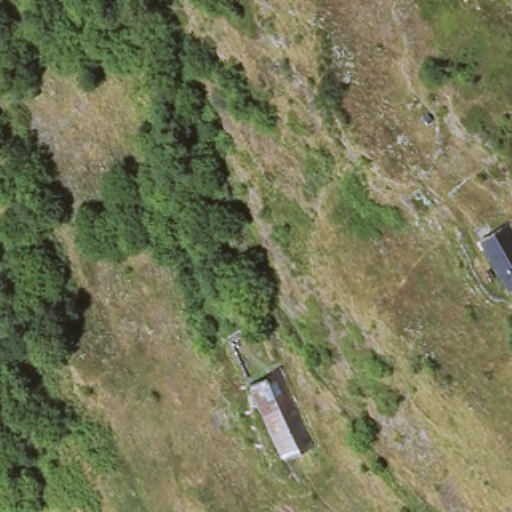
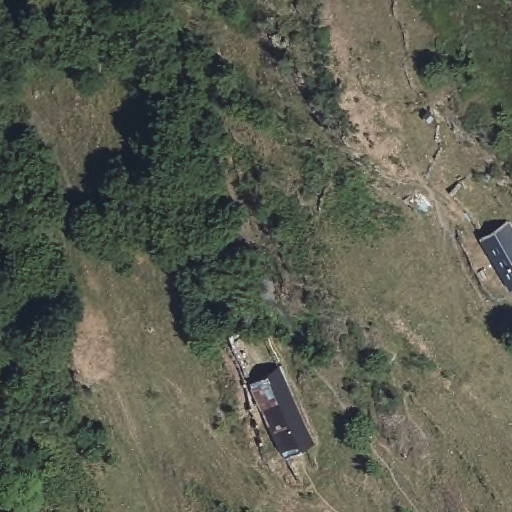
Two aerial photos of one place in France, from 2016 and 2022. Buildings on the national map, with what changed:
unchanged [(512,244),(512,284),(500,292),(484,264),(466,236),(497,219),(512,244)]
unchanged [(305,447),(275,461),(247,402),(215,334),(245,319),(305,447)]

